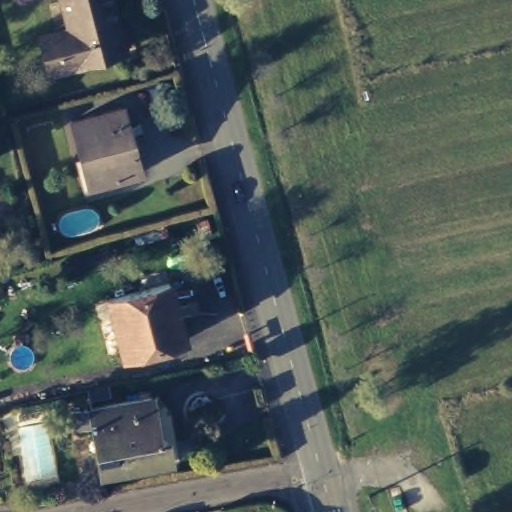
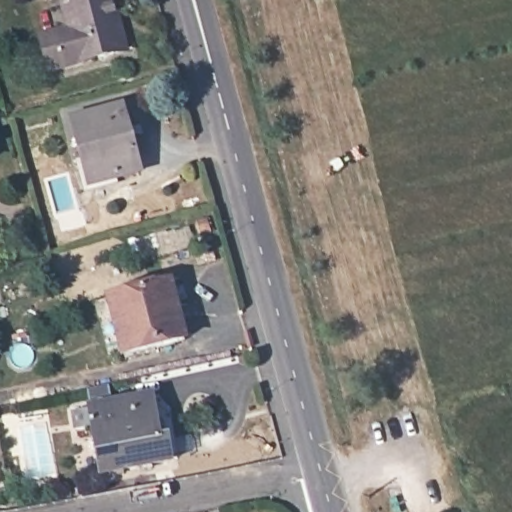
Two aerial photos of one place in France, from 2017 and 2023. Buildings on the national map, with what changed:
unchanged [(125,49),(87,60),(78,29),(58,35),(48,0),(119,0),(123,14),(131,47),(125,49)]
unchanged [(140,170),(88,183),(71,118),(123,105),(140,170)]
unchanged [(179,338),(128,350),(115,292),(171,278),(177,303),(185,336),(179,338)]
unchanged [(95,456),(90,457),(87,456),(86,451),(88,448),(93,446),(90,433),(72,438),(68,423),(86,419),(144,405),(152,403),(162,415),(174,462),(166,464),(101,480),(95,456)]
unchanged [(46,438),(65,488),(35,499),(20,447),(46,438)]

